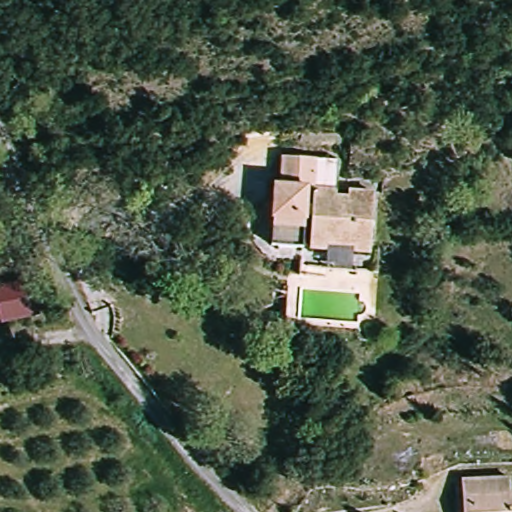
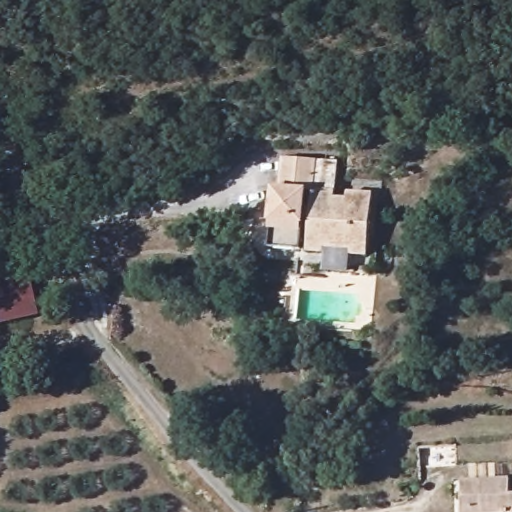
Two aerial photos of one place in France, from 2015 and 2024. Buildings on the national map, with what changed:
unchanged [(315,184),(306,182),(291,239),(264,230),(277,175),(282,176),(291,143),(345,158),(333,207),(346,210),(351,192),(375,199),(359,254),(343,252),(345,241),(321,236),(317,246),(300,241),(315,184)]
unchanged [(313,265),(310,275),(286,269),(293,239),(300,241),(317,246),(321,236),(345,241),(343,252),(359,254),(373,259),(367,280),(313,265)]
unchanged [(23,279),(32,308),(35,318),(1,330),(0,326),(0,286),(23,279)]
unchanged [(455,488),(503,484),(505,495),(512,495),(512,512),(457,512),(455,488)]

